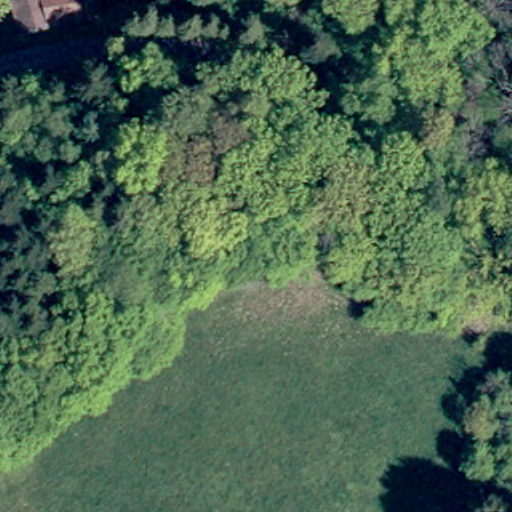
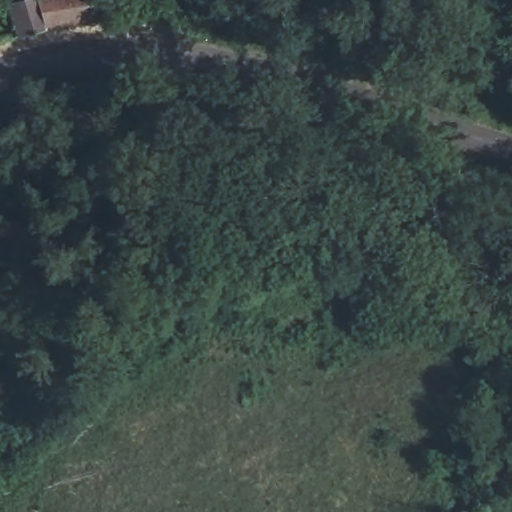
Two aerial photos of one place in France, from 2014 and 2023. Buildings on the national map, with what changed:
unchanged [(60,6),(58,0),(104,0),(110,34),(30,49),(22,15),(60,6)]

